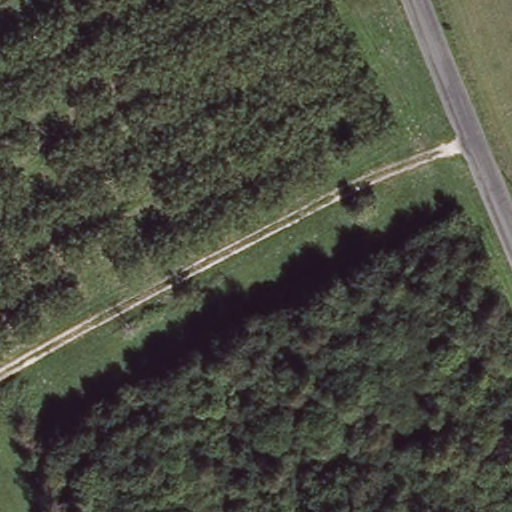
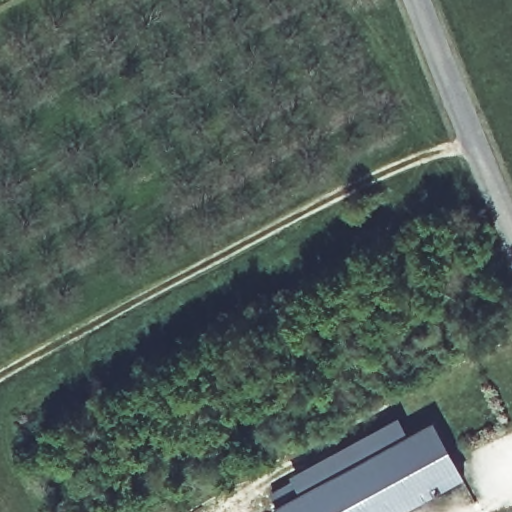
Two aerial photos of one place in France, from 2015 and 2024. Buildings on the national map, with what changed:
new [(298,492),(428,419),(458,474),(392,512),(272,512),(271,508),(274,506),(267,494),(291,481),(298,492)]

